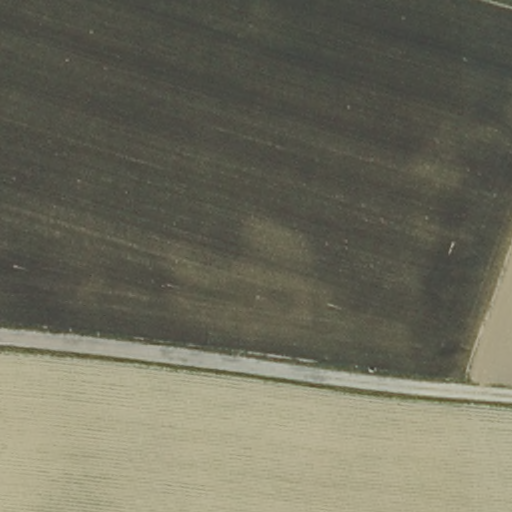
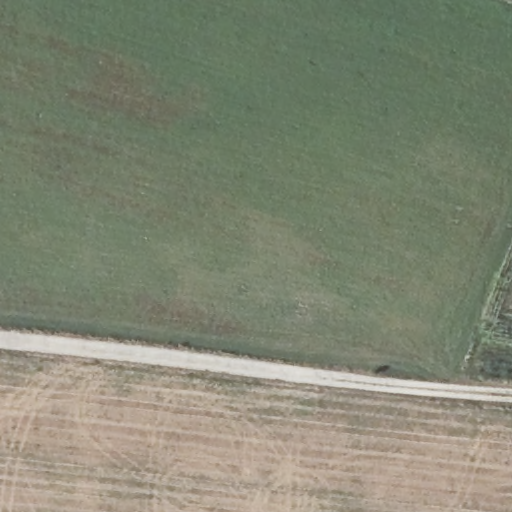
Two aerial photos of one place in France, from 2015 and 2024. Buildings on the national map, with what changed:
[]

